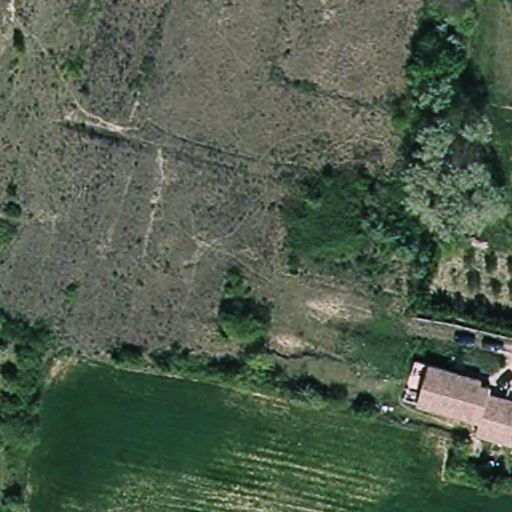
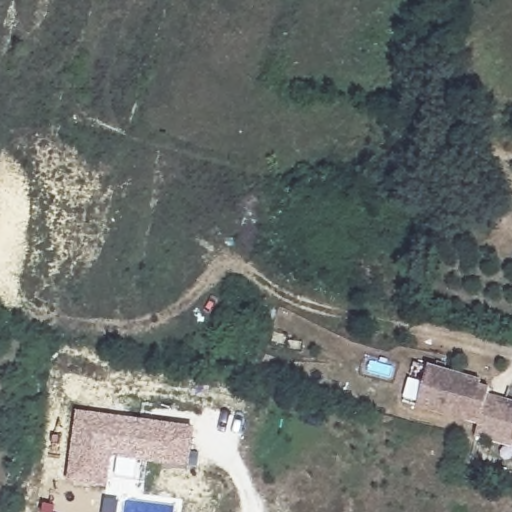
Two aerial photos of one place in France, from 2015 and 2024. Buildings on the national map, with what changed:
unchanged [(487,426),(409,405),(419,365),(488,382),(487,387),(496,390),(495,396),(512,400),(512,445),(484,438),(487,426)]
new [(75,416),(189,429),(185,467),(108,458),(104,488),(67,484),(75,416)]

